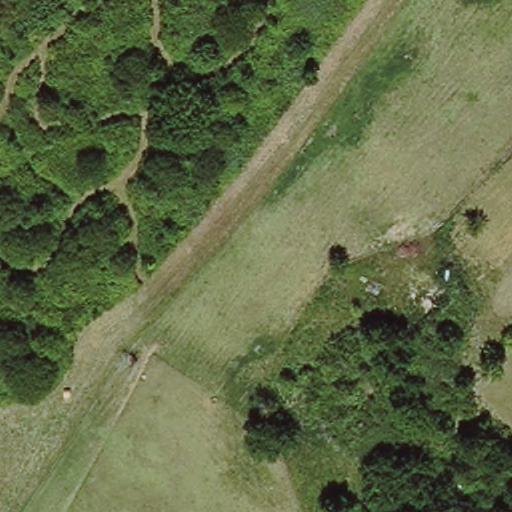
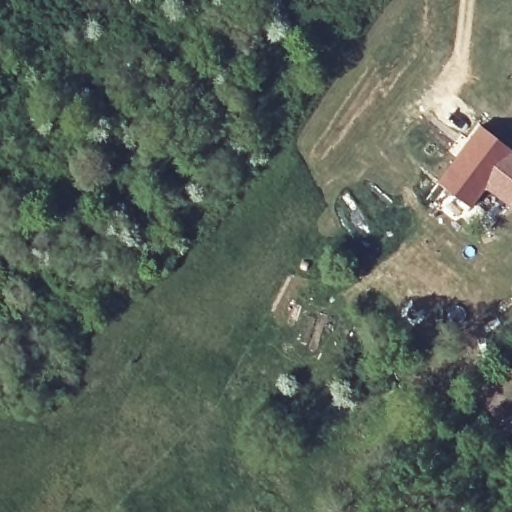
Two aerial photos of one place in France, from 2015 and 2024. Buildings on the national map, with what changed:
new [(470,142),(481,126),(512,149),(512,206),(492,192),(478,211),(440,184),(465,150),(470,142)]

